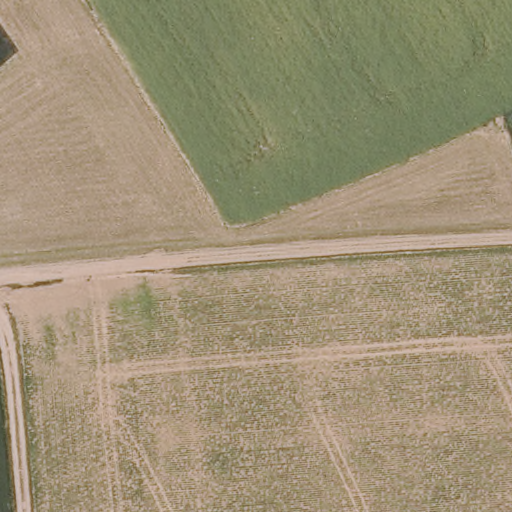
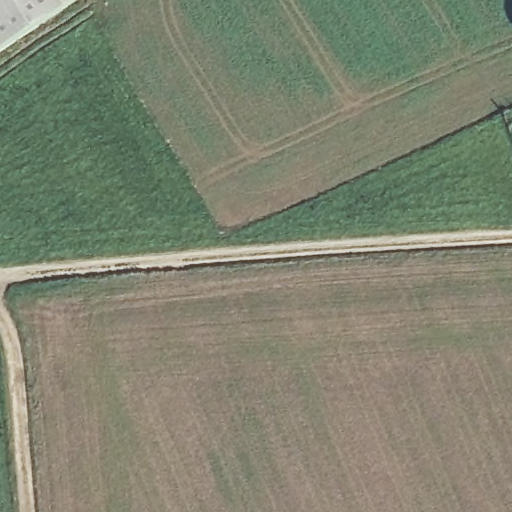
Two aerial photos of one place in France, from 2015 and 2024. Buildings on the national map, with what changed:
new [(66,18),(0,59),(0,0),(76,0),(61,11),(66,18)]

